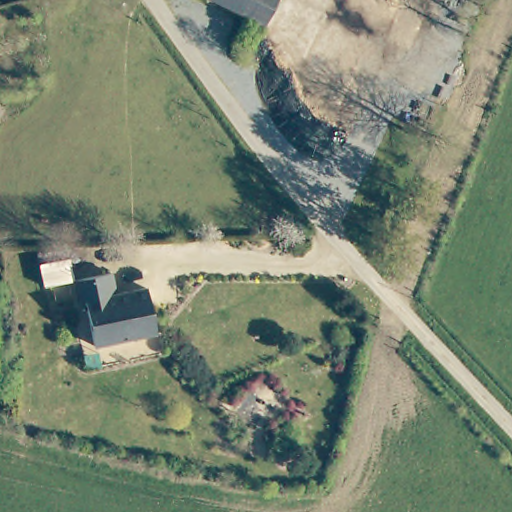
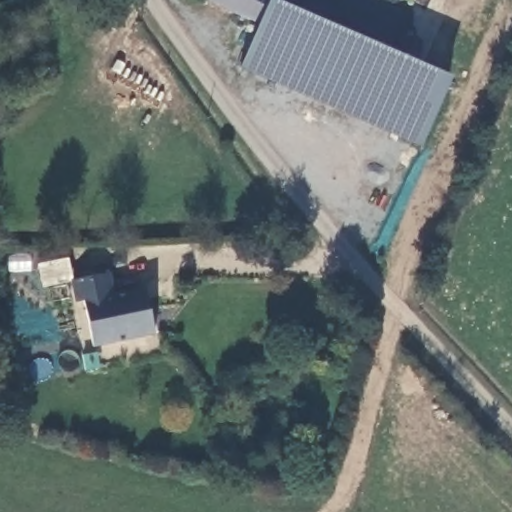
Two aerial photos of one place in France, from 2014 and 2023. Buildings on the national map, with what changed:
new [(211,0),(269,0),(259,23),(211,0)]
new [(240,67),(259,23),(269,0),(277,0),(452,77),(422,146),(240,67)]
unchanged [(113,297),(117,297),(118,299),(129,297),(134,294),(145,291),(154,337),(94,349),(85,302),(75,304),(71,284),(42,290),(37,267),(68,261),(72,284),(110,277),(113,297)]

